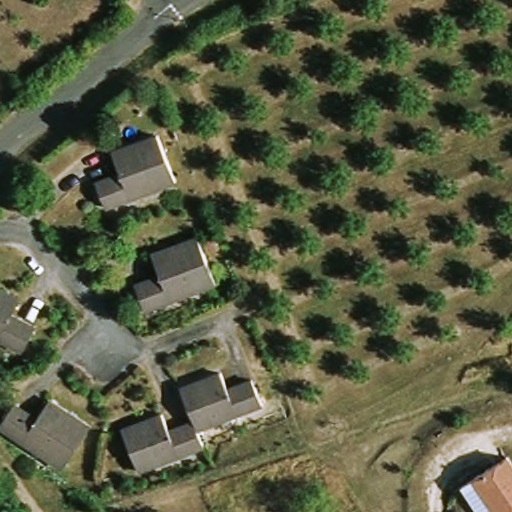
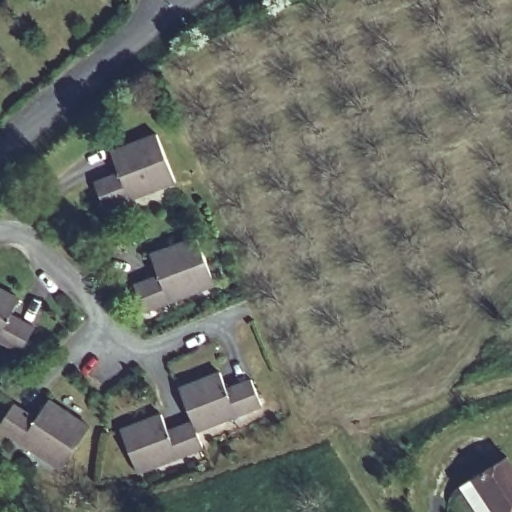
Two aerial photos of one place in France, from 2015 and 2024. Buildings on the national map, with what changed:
unchanged [(117,155),(162,138),(181,185),(109,212),(99,186),(125,175),(117,155)]
unchanged [(138,282),(165,273),(158,254),(202,238),(220,286),(150,311),(138,282)]
unchanged [(15,316),(39,329),(25,354),(0,340),(0,286),(25,299),(15,316)]
unchanged [(255,381),(267,411),(203,434),(208,447),(142,472),(125,430),(166,414),(173,431),(198,421),(185,389),(224,375),(230,390),(255,381)]
unchanged [(20,406),(42,421),(55,402),(94,427),(66,470),(3,430),(20,406)]
unchanged [(510,457),(512,460),(512,512),(498,512),(477,478),(510,457)]

